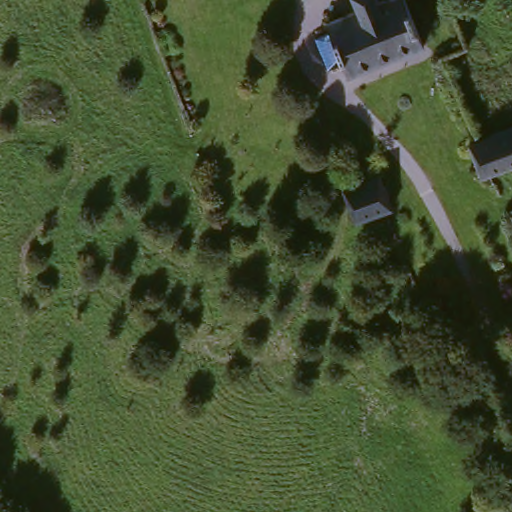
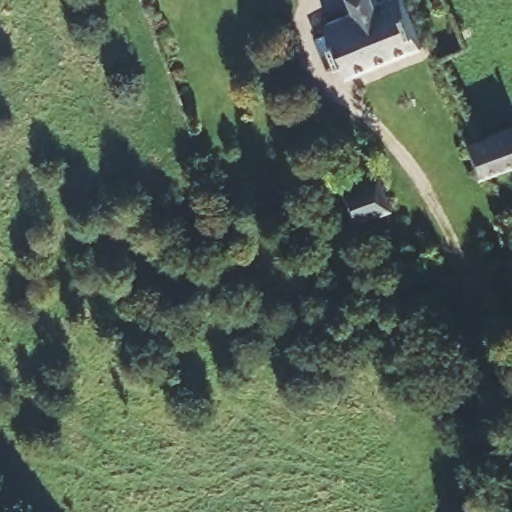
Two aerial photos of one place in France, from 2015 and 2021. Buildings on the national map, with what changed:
unchanged [(424,44),(349,72),(329,19),(362,8),(359,0),(410,0),(424,44)]
unchanged [(483,177),(468,142),(512,126),(512,165),(483,177)]
unchanged [(343,187),(381,173),(394,208),(358,221),(343,187)]

